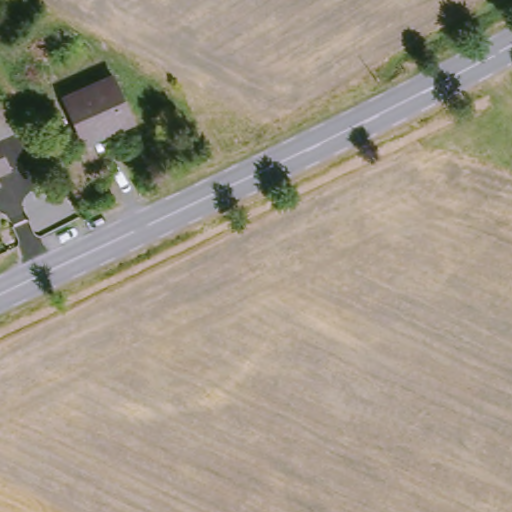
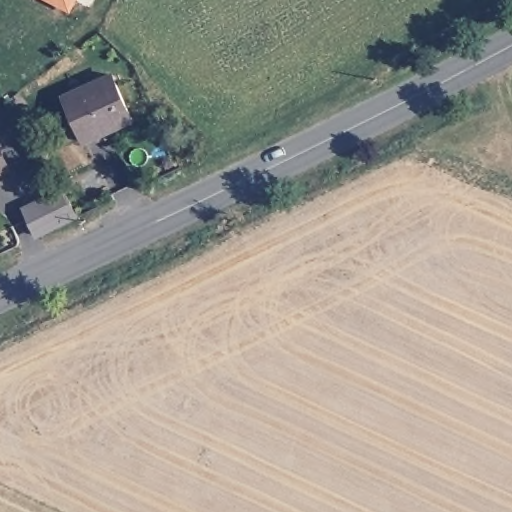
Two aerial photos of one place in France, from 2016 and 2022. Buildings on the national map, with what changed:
new [(70,12),(47,0),(76,0),(70,12)]
unchanged [(78,144),(59,97),(107,76),(127,122),(78,144)]
unchanged [(0,162),(7,178),(0,181),(0,162)]

